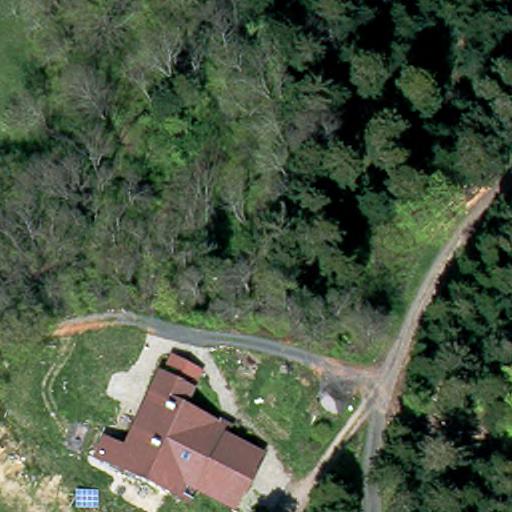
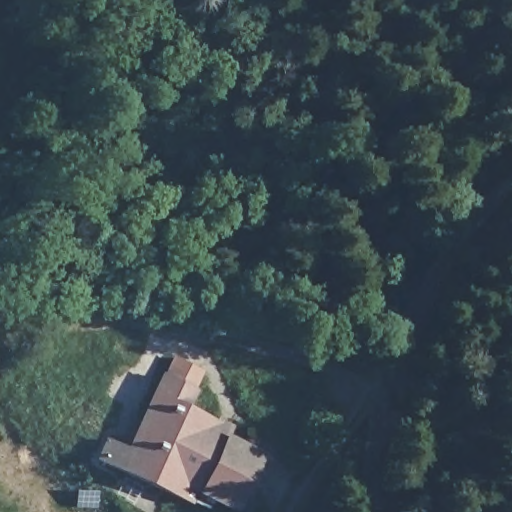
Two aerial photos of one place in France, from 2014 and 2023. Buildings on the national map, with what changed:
unchanged [(99,459),(109,437),(129,445),(156,389),(164,373),(195,387),(186,407),(227,425),(221,436),(195,491),(191,498),(120,464),(118,468),(99,459)]
unchanged [(236,510),(195,491),(221,436),(245,447),(264,457),(260,466),(236,510)]

